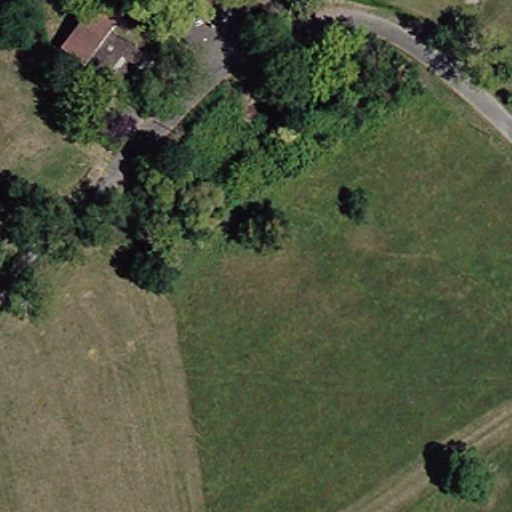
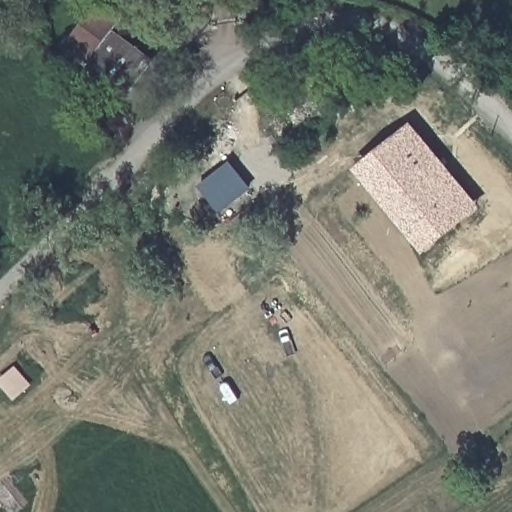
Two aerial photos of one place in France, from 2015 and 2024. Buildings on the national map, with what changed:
unchanged [(61,50),(57,48),(59,46),(90,0),(93,0),(115,16),(105,31),(145,59),(146,61),(125,91),(105,78),(82,63),(81,65),(61,50)]
new [(422,254),(352,169),(410,121),(481,208),(422,254)]
new [(221,214),(200,187),(230,164),(251,191),(221,214)]

